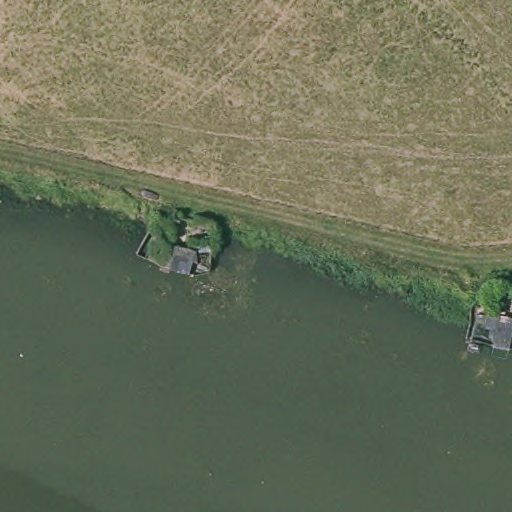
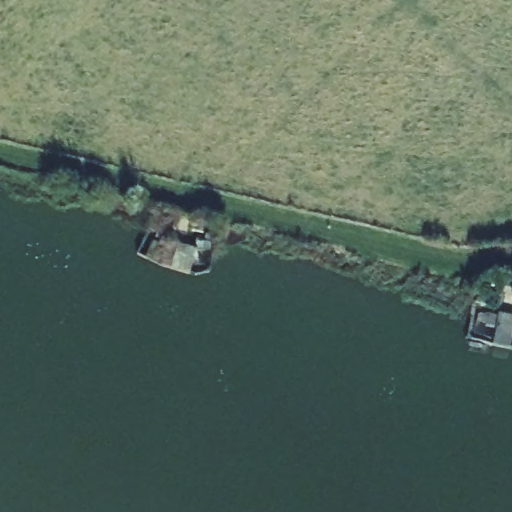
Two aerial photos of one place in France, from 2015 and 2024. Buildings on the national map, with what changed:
unchanged [(152,217),(175,224),(170,241),(192,246),(185,267),(140,255),(152,217)]
unchanged [(487,306),(510,307),(509,346),(483,341),(487,306)]

